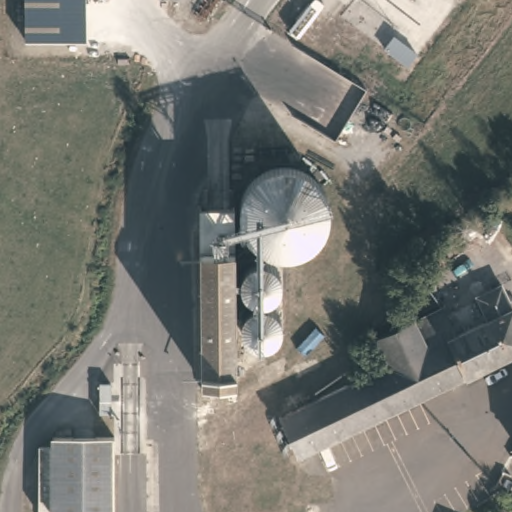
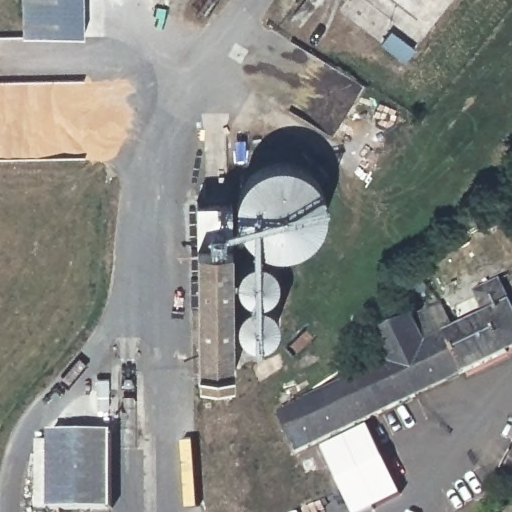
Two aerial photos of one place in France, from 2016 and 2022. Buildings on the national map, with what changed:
unchanged [(23,0),(84,0),(85,36),(24,36),(23,0)]
unchanged [(327,203),(326,206),(326,208),(326,210),(326,211),(325,212),(325,215),(324,216),(323,219),(322,221),(321,224),(319,226),(319,227),(318,228),(317,230),(315,232),(314,232),(313,234),(312,234),(312,235),(311,235),(310,236),(309,237),(307,238),(305,239),(305,240),(304,240),(302,241),(300,242),(299,243),(296,243),(294,244),(290,245),(288,245),(284,245),(282,245),(278,245),(277,245),(273,244),(271,244),(270,243),(267,242),(265,241),(262,240),(261,239),(259,238),(258,237),(256,236),(255,234),(253,233),(252,232),(250,230),(249,228),(248,227),(247,226),(246,225),(245,223),(245,221),(243,217),(242,216),(241,212),(241,210),(240,208),(240,206),(240,204),(240,200),(240,197),(241,195),(241,193),(241,191),(242,188),(243,187),(245,183),(245,181),(247,179),(248,177),(249,176),(249,175),(250,174),(251,173),(252,172),(253,171),(256,168),(259,166),(260,165),(262,164),(265,163),(269,161),(270,161),(274,160),(276,159),(277,159),(280,159),(281,159),(284,159),(287,159),(291,159),(293,160),(298,161),(299,161),(301,162),(303,163),(305,165),(306,165),(308,166),(310,168),(311,168),(314,171),(315,172),(317,174),(319,178),(321,181),(322,183),(324,186),(324,187),(324,188),(325,190),(325,192),(326,195),(326,198),(327,200),(327,202),(327,203)]
unchanged [(233,372),(201,373),(198,196),(233,196),(233,372)]
unchanged [(279,274),(279,276),(278,277),(278,278),(277,280),(277,281),(276,283),(276,284),(275,285),(275,286),(274,286),(274,287),(273,287),(272,288),(271,289),(269,291),(268,291),(267,292),(266,292),(265,292),(265,293),(264,293),(263,293),(260,293),(259,293),(257,293),(254,293),(253,293),(252,292),(251,292),(250,291),(249,291),(248,290),(246,289),(244,288),(243,286),(242,285),(242,284),(241,284),(241,283),(240,281),(240,280),(239,279),(239,278),(239,277),(238,274),(238,273),(238,272),(239,270),(239,268),(240,265),(240,264),(241,264),(241,263),(242,262),(243,260),(244,259),(246,258),(246,257),(247,257),(249,256),(251,254),(253,254),(255,253),(257,253),(258,253),(260,253),(263,253),(264,254),(265,254),(266,254),(266,255),(268,256),(270,257),(271,257),(271,258),(272,258),(272,259),(273,260),(274,260),(274,261),(275,261),(275,262),(276,263),(276,264),(277,265),(278,267),(278,269),(278,270),(279,271),(279,273),(279,274)]
unchanged [(374,335),(411,316),(442,304),(455,330),(484,315),(471,291),(499,280),(510,302),(512,307),(512,352),(296,454),(280,411),(387,363),(374,335)]
unchanged [(278,317),(278,318),(278,320),(277,321),(277,324),(276,325),(275,327),(274,328),(274,329),(273,329),(272,330),(271,331),(270,332),(269,333),(268,333),(267,334),(265,335),(264,335),(263,335),(262,335),(260,336),(258,336),(257,336),(256,336),(255,335),(253,335),(251,334),(250,334),(248,333),(247,332),(246,331),(245,330),(244,329),(243,328),(242,326),(240,324),(240,323),(240,322),(239,322),(239,321),(239,320),(239,319),(239,318),(239,317),(239,315),(239,314),(239,313),(239,312),(239,311),(239,310),(240,310),(240,309),(241,307),(242,306),(242,305),(243,304),(243,303),(244,303),(244,302),(245,301),(246,301),(247,300),(248,299),(249,299),(251,298),(252,297),(253,297),(254,297),(255,297),(255,296),(257,296),(259,296),(260,296),(261,296),(263,297),(264,297),(265,297),(266,298),(268,299),(270,300),(271,301),(273,302),(273,303),(274,304),(275,305),(276,307),(277,309),(277,310),(278,311),(278,312),(278,314),(278,315),(278,316),(278,317)]
new [(366,512),(350,512),(321,449),(367,426),(400,495),(366,512)]
unchanged [(49,434),(113,432),(112,508),(48,511),(49,434)]

